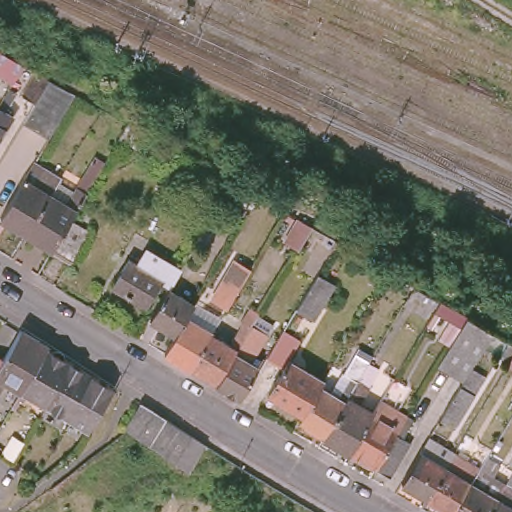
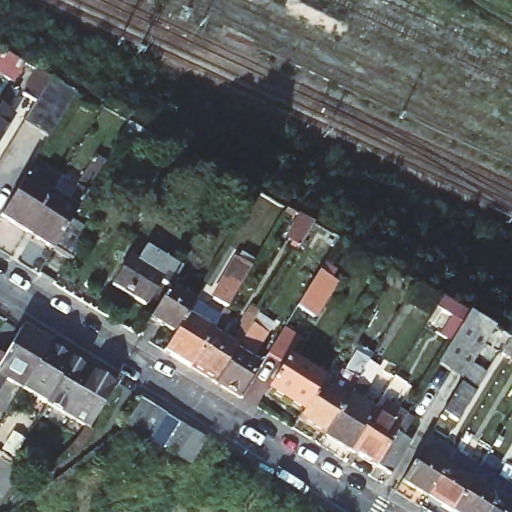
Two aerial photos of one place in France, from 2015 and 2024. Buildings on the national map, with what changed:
unchanged [(2,48),(15,55),(14,58),(25,65),(21,71),(0,59),(0,50),(2,48)]
unchanged [(25,124),(37,103),(24,95),(37,72),(52,80),(76,94),(49,138),(25,124)]
unchanged [(17,92),(5,112),(13,116),(0,139),(0,106),(11,87),(17,92)]
unchanged [(0,219),(0,210),(19,179),(47,195),(24,233),(0,219)]
unchanged [(250,214),(231,196),(238,185),(257,203),(250,214)]
unchanged [(67,258),(50,248),(24,233),(47,195),(62,204),(72,186),(83,193),(67,220),(84,230),(67,258)]
unchanged [(295,212),(314,225),(312,228),(304,243),(284,231),(292,217),(295,212)]
unchanged [(164,293),(155,288),(143,310),(110,290),(125,263),(128,264),(130,265),(132,266),(134,268),(137,264),(143,253),(177,273),(164,293)]
unchanged [(237,256),(245,261),(249,254),(255,258),(251,265),(227,304),(213,295),(237,256)]
unchanged [(318,271),(335,281),(314,316),(297,306),(318,271)]
unchanged [(406,301),(416,285),(442,299),(432,316),(406,301)]
unchanged [(164,293),(190,308),(182,322),(172,339),(146,324),(164,293)]
unchanged [(252,363),(255,365),(235,401),(212,387),(187,372),(207,339),(225,350),(237,332),(240,322),(247,309),(257,314),(230,358),(247,369),(252,363)]
unchanged [(469,314),(494,328),(463,379),(437,364),(469,314)]
unchanged [(161,356),(172,339),(182,322),(207,338),(207,339),(187,372),(161,356)]
unchanged [(5,380),(0,389),(0,362),(20,329),(45,344),(19,389),(5,380)]
unchanged [(297,343),(286,361),(311,375),(317,365),(327,370),(315,389),(298,417),(263,397),(281,366),(265,356),(260,363),(252,357),(260,343),(270,348),(279,332),(297,343)]
unchanged [(85,431),(19,389),(45,344),(114,386),(85,431)]
unchanged [(512,348),(512,366),(504,361),(512,348)]
unchanged [(294,424),(298,417),(315,389),(332,399),(345,378),(340,375),(352,356),(365,364),(354,383),(319,439),(294,424)]
unchanged [(345,455),(319,439),(354,383),(364,389),(354,406),(370,415),(345,455)]
unchanged [(475,392),(457,422),(448,417),(445,421),(440,418),(460,384),(475,392)]
unchanged [(171,457),(162,452),(150,444),(136,436),(125,429),(123,428),(139,401),(152,409),(166,417),(179,425),(190,432),(204,440),(188,462),(185,464),(174,459),(171,457)]
unchanged [(398,442),(404,446),(385,478),(370,469),(345,455),(370,415),(377,402),(403,417),(402,419),(409,424),(398,442)]
unchanged [(396,486),(415,456),(440,471),(422,501),(396,486)]
unchanged [(482,461),(495,469),(487,481),(500,489),(486,512),(451,512),(466,487),(482,461)]
unchanged [(466,487),(451,512),(439,512),(422,501),(440,471),(466,487)]
unchanged [(512,497),(512,512),(486,512),(500,489),(512,497)]

